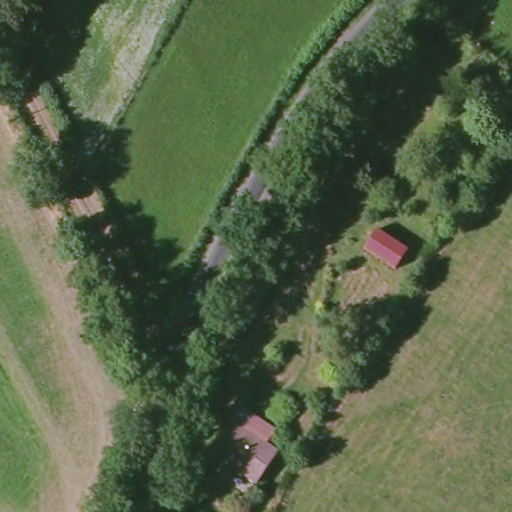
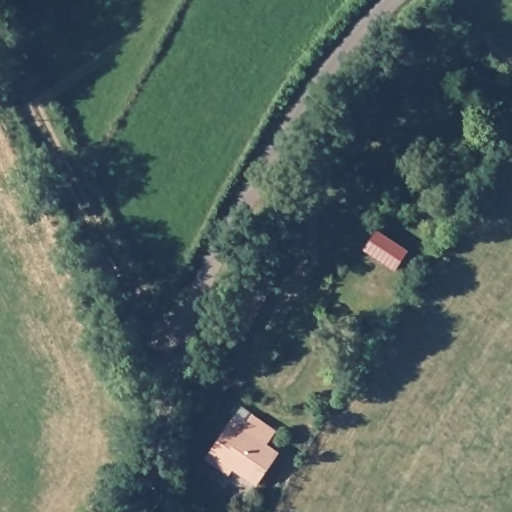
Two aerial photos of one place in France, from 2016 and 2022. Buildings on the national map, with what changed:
unchanged [(252,328),(245,343),(224,337),(231,322),(270,254),(288,265),(252,328)]
unchanged [(212,459),(215,453),(236,422),(246,407),(259,417),(280,432),(272,447),(285,456),(265,486),(237,468),(232,474),(212,459)]

